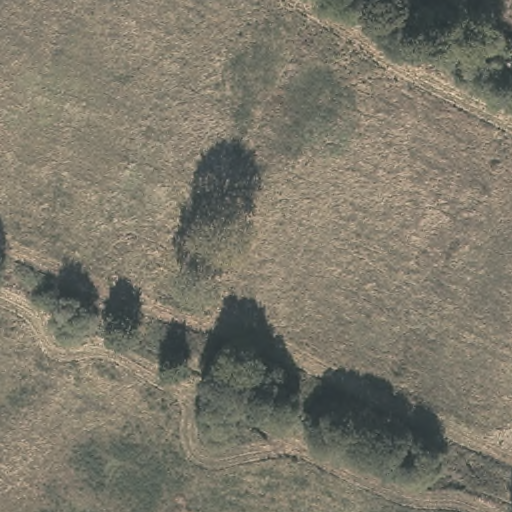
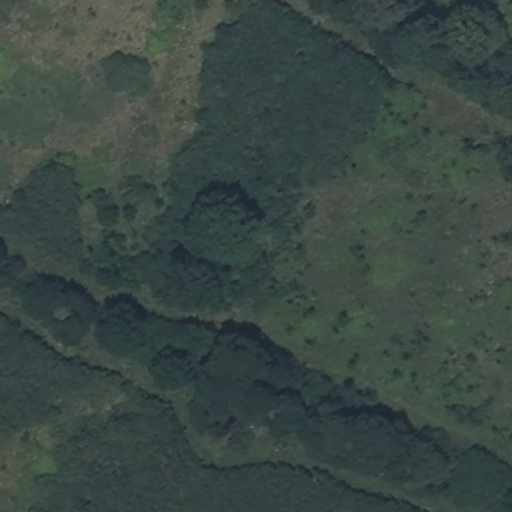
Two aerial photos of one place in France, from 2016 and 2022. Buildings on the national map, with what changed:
[]

